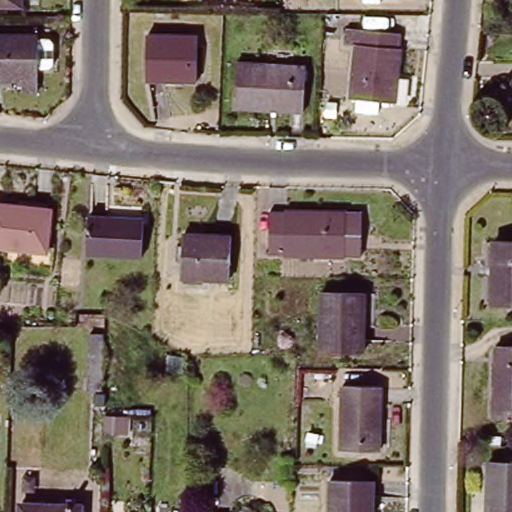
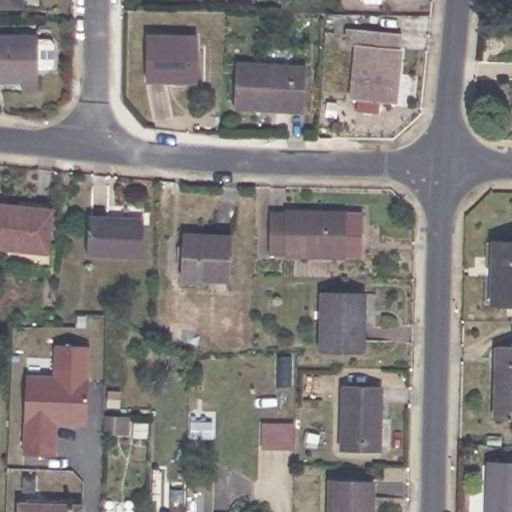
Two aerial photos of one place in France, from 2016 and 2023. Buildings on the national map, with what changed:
unchanged [(21,0),(21,3),(0,3),(0,0),(21,0)]
unchanged [(357,21),(356,26),(397,29),(393,90),(381,89),(380,101),(357,99),(358,89),(352,88),(356,35),(350,34),(350,20),(357,21)]
unchanged [(199,31),(198,77),(147,76),(148,30),(199,31)]
unchanged [(35,33),(33,89),(17,88),(18,76),(0,75),(0,32),(35,33)]
unchanged [(305,61),(303,104),(235,101),(236,59),(305,61)]
unchanged [(52,207),(46,249),(0,243),(0,199),(52,207)]
unchanged [(341,209),(341,207),(358,208),(356,254),(263,250),(265,207),(341,209)]
unchanged [(145,215),(143,254),(86,252),(88,212),(145,215)]
unchanged [(232,233),(228,276),(180,272),(183,229),(232,233)]
unchanged [(512,239),(512,301),(496,300),(498,239),(512,239)]
unchanged [(329,289),(364,290),(362,350),(327,349),(329,289)]
unchanged [(512,343),(512,416),(489,415),(491,343),(512,343)]
new [(87,426),(58,425),(56,457),(22,454),(26,374),(53,376),(54,344),(89,346),(87,426)]
unchanged [(341,384),(380,386),(376,449),(338,448),(341,384)]
unchanged [(512,459),(512,512),(491,512),(491,459),(512,459)]
unchanged [(326,477),(370,478),(370,512),(326,512),(326,477)]
unchanged [(25,493),(32,494),(68,494),(83,495),(83,512),(24,512),(25,493)]

